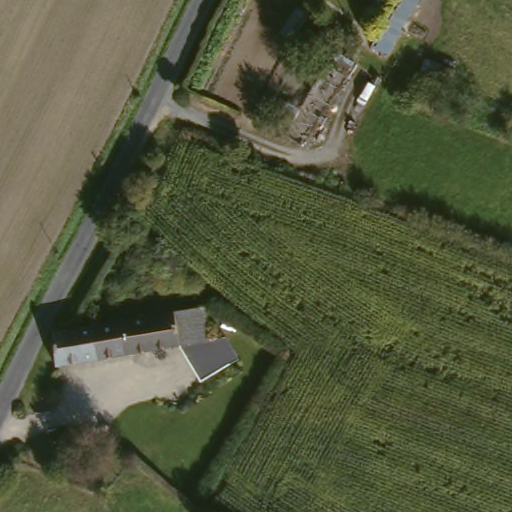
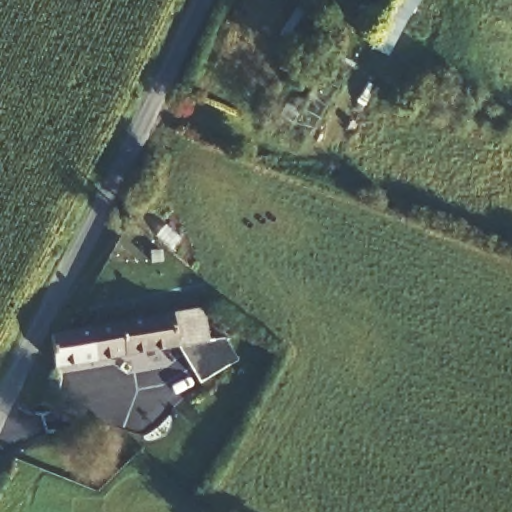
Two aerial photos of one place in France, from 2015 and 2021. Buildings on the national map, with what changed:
unchanged [(336,72),(324,65),(333,51),(345,58),(336,72)]
unchanged [(203,309),(209,342),(179,347),(174,313),(203,309)]
unchanged [(125,356),(121,322),(121,321),(174,313),(179,347),(125,356)]
unchanged [(93,361),(86,328),(121,322),(125,356),(93,361)]
unchanged [(56,367),(52,335),(86,328),(93,361),(56,367)]

